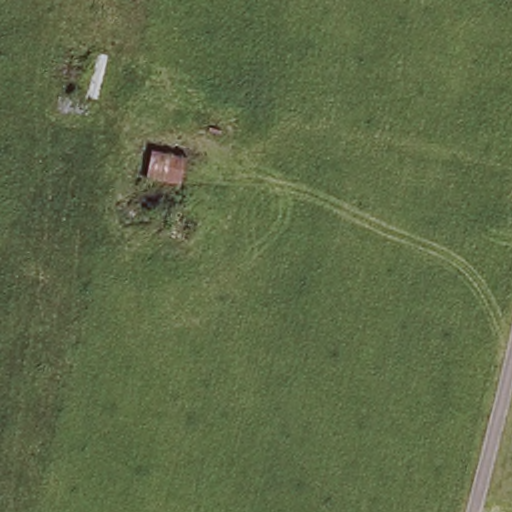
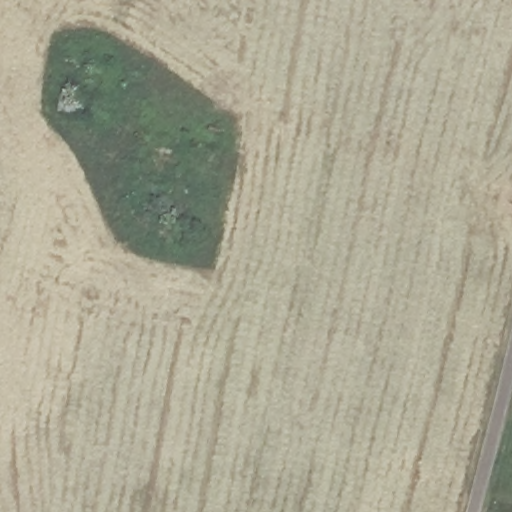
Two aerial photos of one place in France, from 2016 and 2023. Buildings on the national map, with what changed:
unchanged [(150,175),(157,150),(190,154),(186,179),(150,175)]

